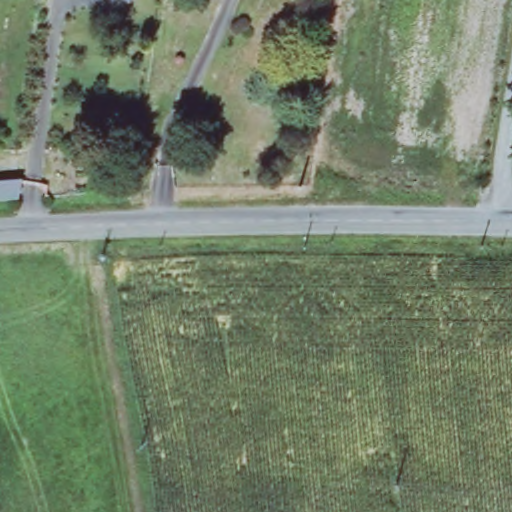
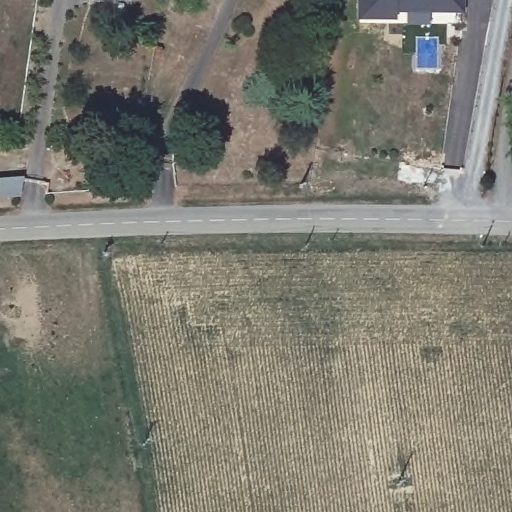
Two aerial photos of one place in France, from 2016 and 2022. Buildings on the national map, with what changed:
new [(396,13),(396,20),(358,20),(358,0),(464,0),(464,14),(396,13)]
new [(29,191),(0,189),(0,174),(32,176),(29,191)]

